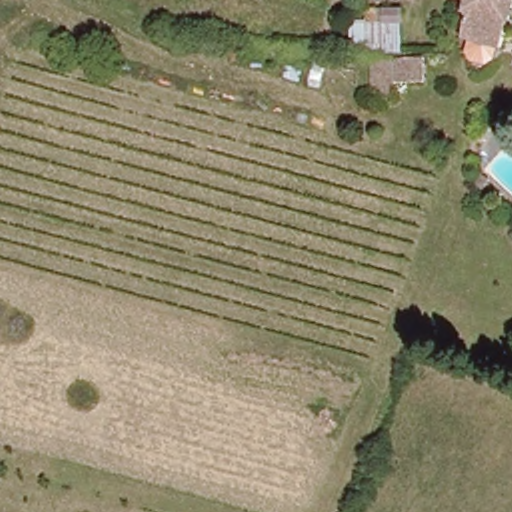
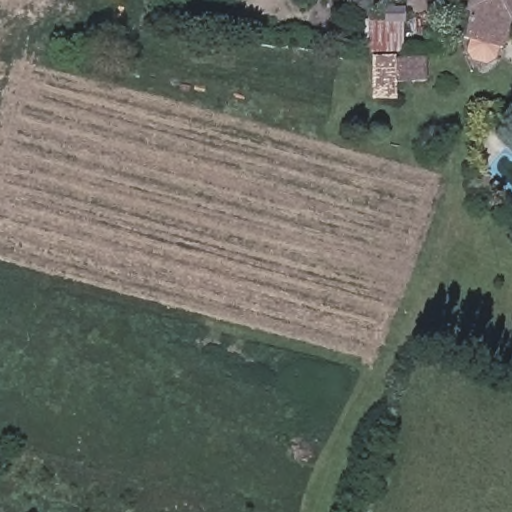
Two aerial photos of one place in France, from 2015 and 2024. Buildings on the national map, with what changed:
unchanged [(486,44),(451,30),(451,29),(457,13),(449,5),(451,0),(504,0),(490,41),(486,44)]
unchanged [(346,34),(346,20),(363,20),(363,34),(346,34)]
unchanged [(384,64),(383,86),(355,86),(353,103),(325,103),(326,84),(333,84),(335,61),(384,64)]

